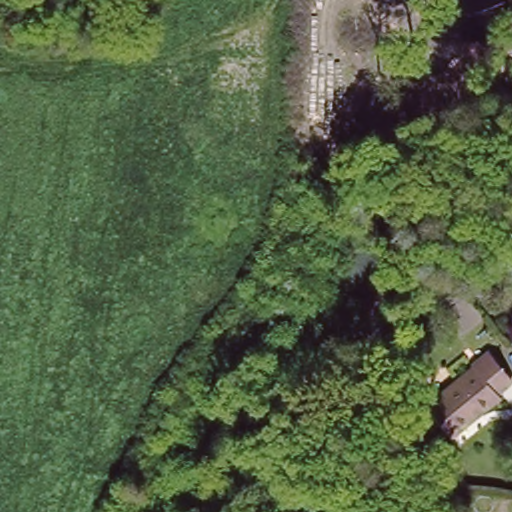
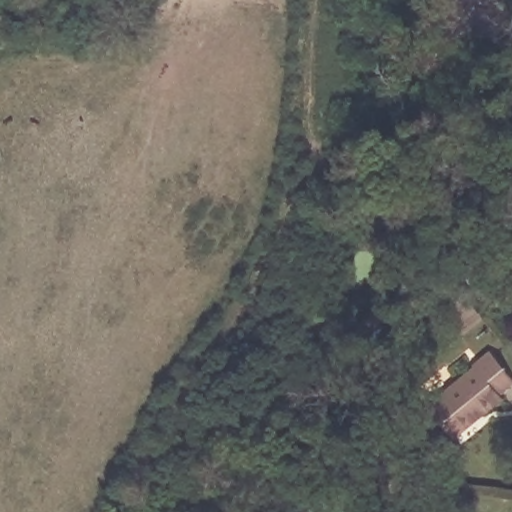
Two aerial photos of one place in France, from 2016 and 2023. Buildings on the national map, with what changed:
unchanged [(478,360),(493,349),(512,377),(512,384),(502,391),(505,395),(462,426),(440,394),(482,364),(478,360)]

